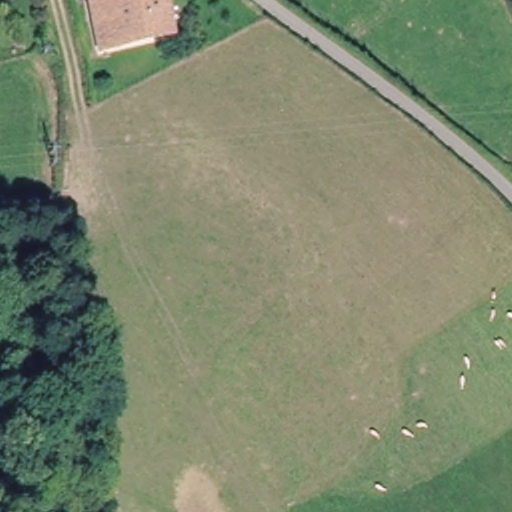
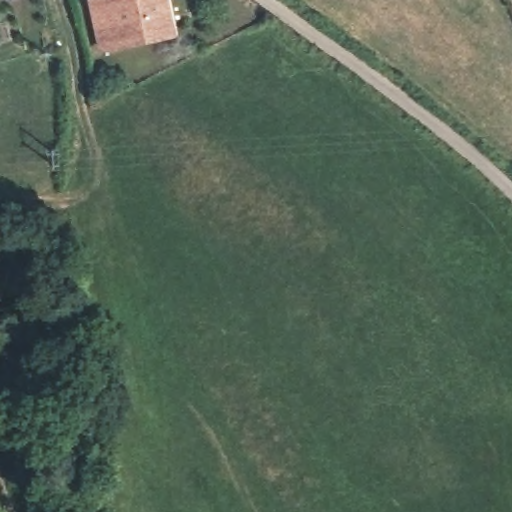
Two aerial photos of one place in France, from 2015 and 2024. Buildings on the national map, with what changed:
unchanged [(104,55),(94,1),(96,0),(166,0),(175,42),(104,55)]

